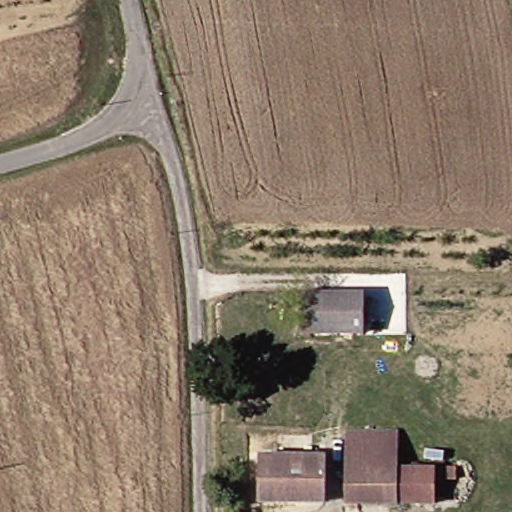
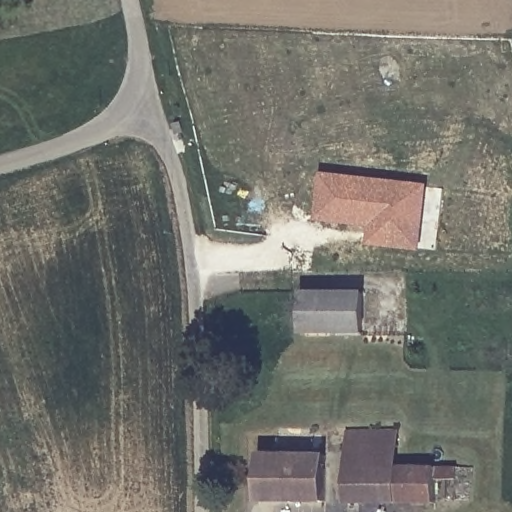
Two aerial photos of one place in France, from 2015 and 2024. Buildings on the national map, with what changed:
new [(370,227),(317,221),(321,173),(430,185),(422,251),(369,245),(370,227)]
unchanged [(356,293),(356,334),(290,334),(289,293),(356,293)]
unchanged [(340,445),(399,445),(399,467),(339,466),(340,445)]
unchanged [(249,458),(316,460),(316,504),(251,503),(249,458)]
unchanged [(399,467),(462,467),(469,478),(459,483),(435,483),(433,504),(355,501),(356,512),(339,512),(339,466),(399,467)]

